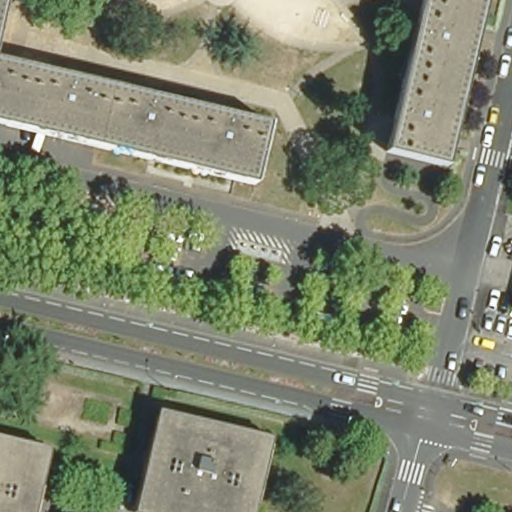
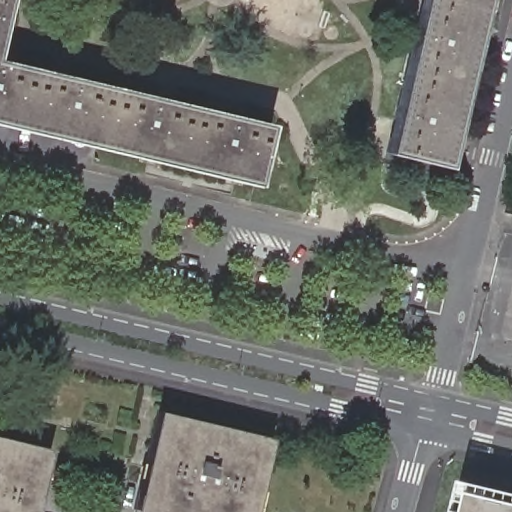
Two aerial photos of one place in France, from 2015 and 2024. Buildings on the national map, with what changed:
unchanged [(0,22),(0,0),(5,0),(0,22)]
unchanged [(462,171),(404,157),(440,0),(501,0),(462,171)]
unchanged [(501,0),(507,0),(467,172),(462,171),(501,0)]
unchanged [(0,64),(287,131),(274,188),(0,123),(0,64)]
unchanged [(0,130),(0,123),(274,188),(272,194),(0,130)]
unchanged [(271,437),(254,512),(248,512),(264,441),(161,418),(138,512),(132,512),(151,432),(156,412),(161,413),(254,434),(271,437)]
unchanged [(264,441),(248,512),(138,512),(161,418),(264,441)]
unchanged [(37,512),(32,512),(46,454),(0,442),(0,438),(52,450),(37,512)]
unchanged [(32,512),(0,512),(0,442),(46,454),(32,512)]
new [(512,498),(512,512),(460,512),(466,487),(512,498)]

